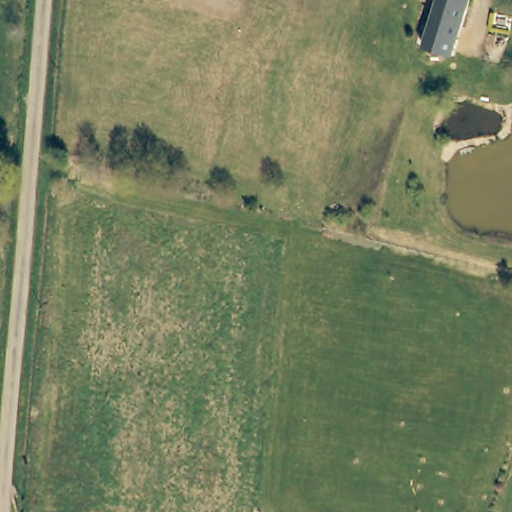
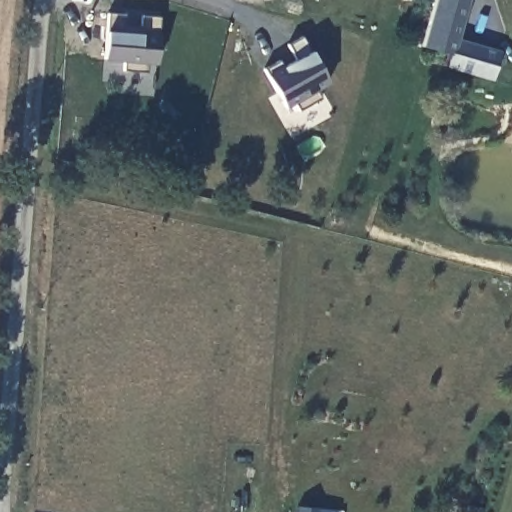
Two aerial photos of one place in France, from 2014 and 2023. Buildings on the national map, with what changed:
unchanged [(419,41),(431,0),(464,0),(449,49),(419,41)]
new [(157,64),(148,63),(147,72),(124,71),(126,61),(103,60),(106,31),(108,14),(125,14),(124,25),(142,27),(142,16),(160,18),(157,64)]
new [(300,110),(295,103),(286,109),(264,74),(267,73),(265,69),(294,54),(289,45),(302,38),(311,51),(329,83),(316,90),(321,99),(300,110)]

